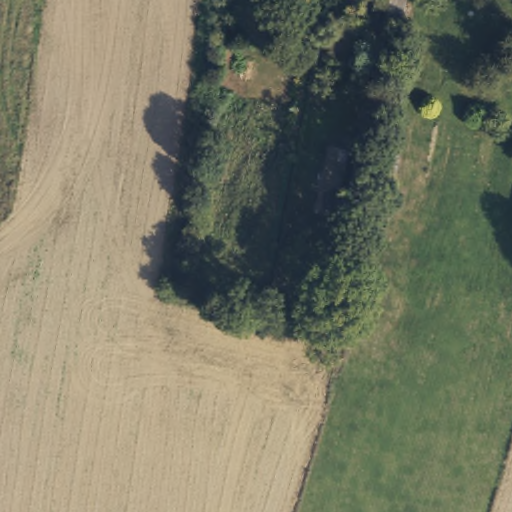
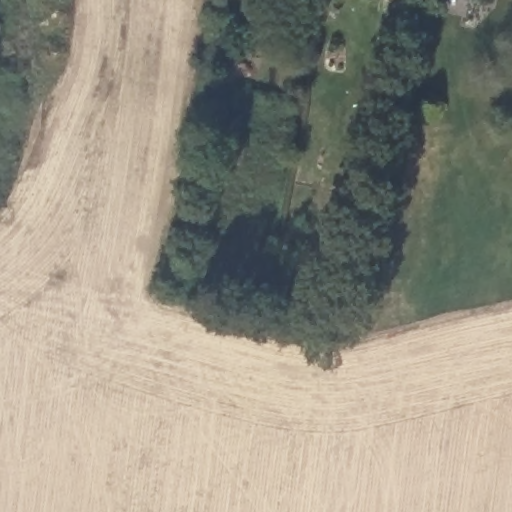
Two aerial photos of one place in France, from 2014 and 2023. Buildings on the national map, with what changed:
unchanged [(407,0),(404,24),(403,31),(385,27),(390,0),(407,0)]

